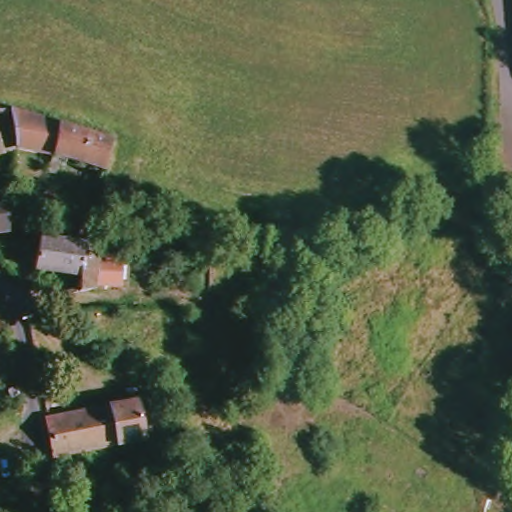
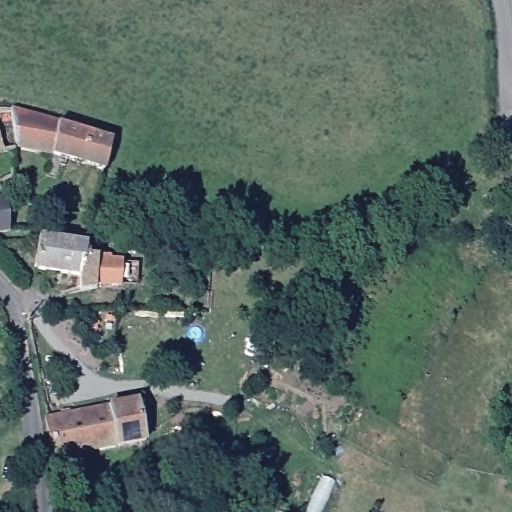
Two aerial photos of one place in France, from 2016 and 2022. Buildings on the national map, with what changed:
unchanged [(57,122),(52,155),(15,145),(10,110),(57,122)]
unchanged [(111,138),(104,171),(52,155),(57,122),(111,138)]
unchanged [(4,152),(0,153),(0,144),(4,152)]
unchanged [(5,199),(6,233),(0,234),(0,200),(5,199)]
unchanged [(117,281),(94,280),(93,285),(79,287),(80,273),(33,265),(38,235),(87,241),(85,253),(95,253),(95,258),(118,259),(117,281)]
unchanged [(52,456),(46,418),(47,418),(139,401),(145,439),(53,456),(52,456)]
unchanged [(137,457),(160,450),(164,463),(141,472),(137,457)]

